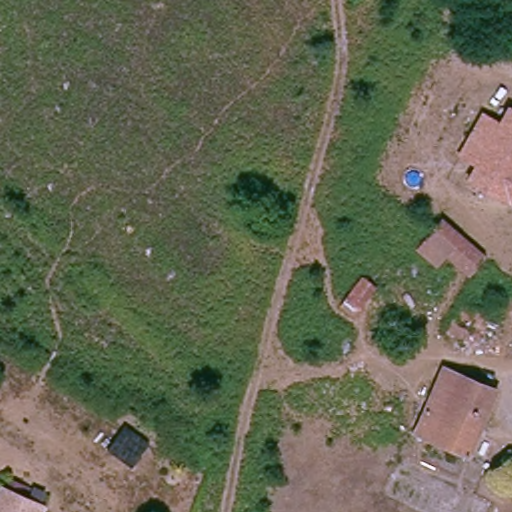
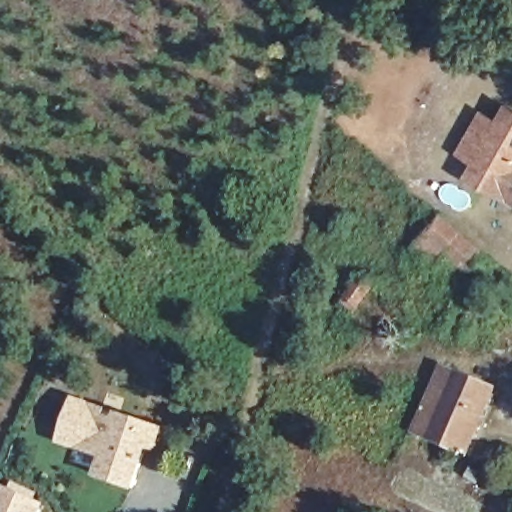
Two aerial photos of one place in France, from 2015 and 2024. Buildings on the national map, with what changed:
unchanged [(492,202),(473,185),(460,172),(472,160),(458,146),(488,114),(502,127),(512,117),(512,196),(499,209),(492,202)]
unchanged [(488,255),(471,277),(446,257),(439,267),(414,250),(444,217),(488,255)]
unchanged [(342,316),(362,271),(379,279),(359,325),(342,316)]
unchanged [(459,300),(488,312),(476,342),(448,329),(459,300)]
unchanged [(417,442),(441,361),(496,378),(471,459),(417,442)]
new [(57,444),(73,398),(115,413),(164,430),(156,454),(148,450),(134,490),(95,476),(100,460),(57,444)]
unchanged [(28,512),(0,512),(0,491),(31,503),(28,512)]

